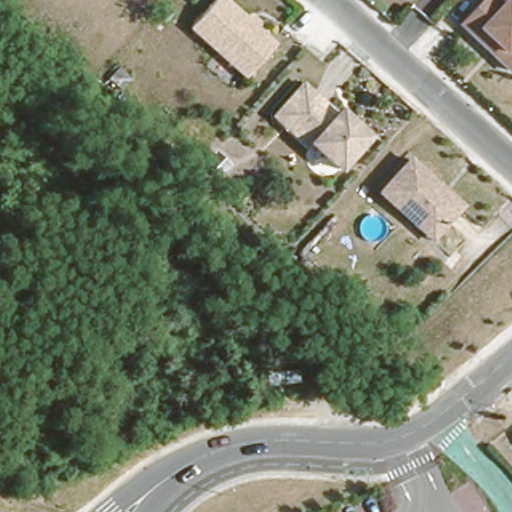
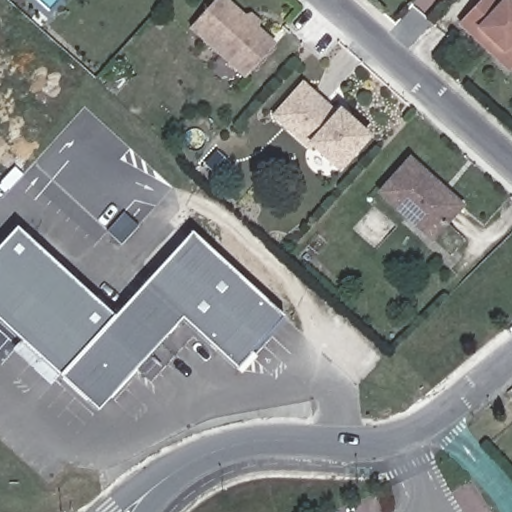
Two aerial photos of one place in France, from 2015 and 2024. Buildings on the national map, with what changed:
unchanged [(241,79),(182,31),(208,0),(215,0),(269,43),(241,79)]
unchanged [(467,43),(497,9),(508,19),(511,16),(512,16),(512,82),(503,74),(491,65),(492,64),(467,43)]
unchanged [(346,133),(349,130),(364,143),(338,175),(308,151),(306,154),(272,125),(299,93),(346,133)]
unchanged [(462,217),(438,245),(411,224),(407,229),(376,203),(404,169),(462,217)]
new [(0,326),(0,248),(14,232),(114,319),(60,378),(0,326)]
new [(114,319),(190,234),(282,317),(235,369),(181,319),(96,412),(60,378),(114,319)]

